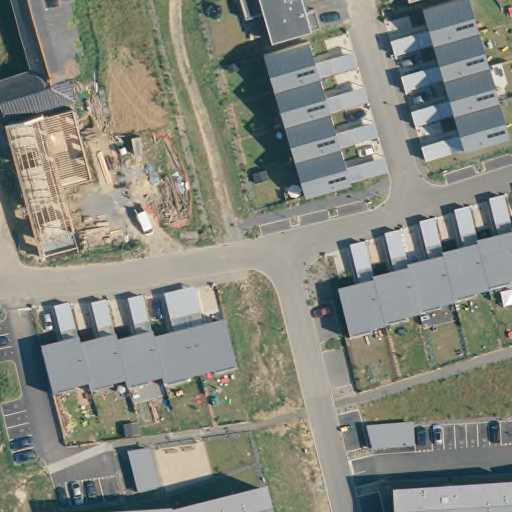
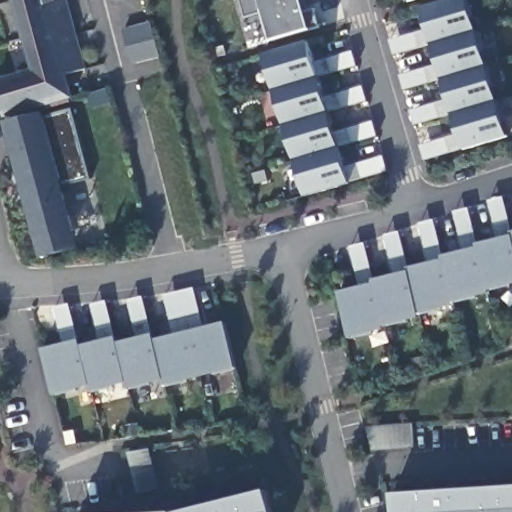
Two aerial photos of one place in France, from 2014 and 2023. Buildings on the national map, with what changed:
unchanged [(70,0),(84,56),(76,58),(81,74),(70,78),(75,100),(3,115),(0,105),(0,79),(30,70),(11,0),(70,0)]
new [(119,5),(118,0),(138,0),(119,5)]
unchanged [(307,14),(315,11),(320,25),(309,31),(273,40),(265,13),(248,17),(243,0),(301,0),(307,14)]
unchanged [(411,2),(410,0),(415,0),(411,2)]
unchanged [(510,136),(464,150),(421,7),(447,0),(470,0),(510,136)]
new [(153,25),(161,60),(135,67),(126,32),(153,25)]
unchanged [(306,200),(262,57),(308,42),(350,183),(306,200)]
unchanged [(39,242),(9,125),(44,116),(45,120),(75,112),(94,182),(64,190),(75,233),(39,242)]
unchanged [(352,342),(336,294),(512,235),(512,287),(352,342)]
unchanged [(240,369),(169,389),(167,383),(132,391),(129,384),(95,393),(93,391),(93,388),(56,397),(45,348),(78,339),(81,346),(115,337),(117,344),(155,336),(156,341),(228,320),(240,369)]
unchanged [(419,447),(373,450),(366,426),(413,422),(419,447)]
unchanged [(139,496),(126,451),(150,449),(161,487),(139,496)]
unchanged [(394,512),(394,494),(512,487),(512,512),(394,512)]
unchanged [(275,512),(184,512),(271,491),(275,512)]

